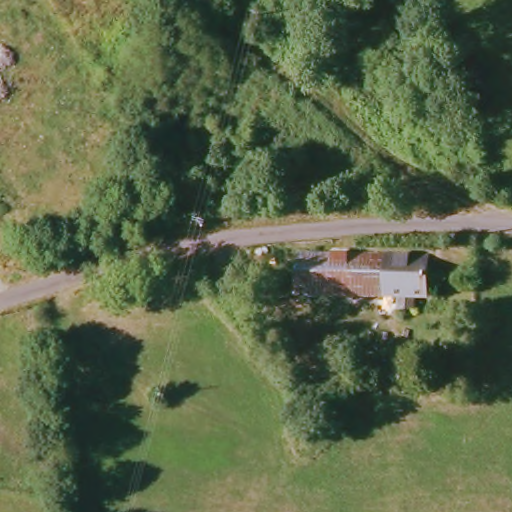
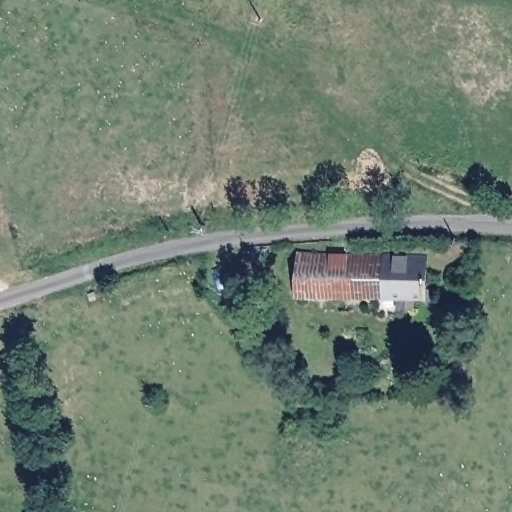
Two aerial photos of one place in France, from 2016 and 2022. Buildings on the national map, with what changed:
unchanged [(290,254),(423,255),(423,296),(291,295),(290,254)]

